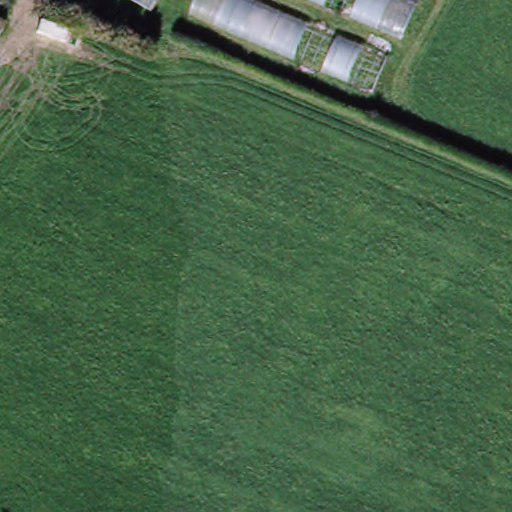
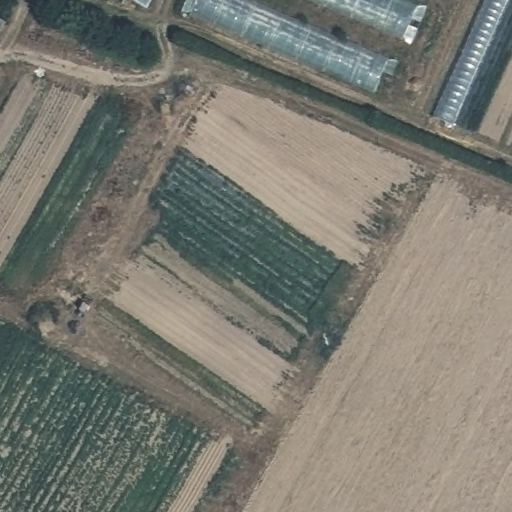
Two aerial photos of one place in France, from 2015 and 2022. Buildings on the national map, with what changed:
unchanged [(107,0),(157,0),(146,20),(107,0)]
unchanged [(376,97),(198,24),(209,0),(428,0),(406,46),(376,97)]
new [(508,0),(453,126),(431,116),(485,0),(508,0)]

